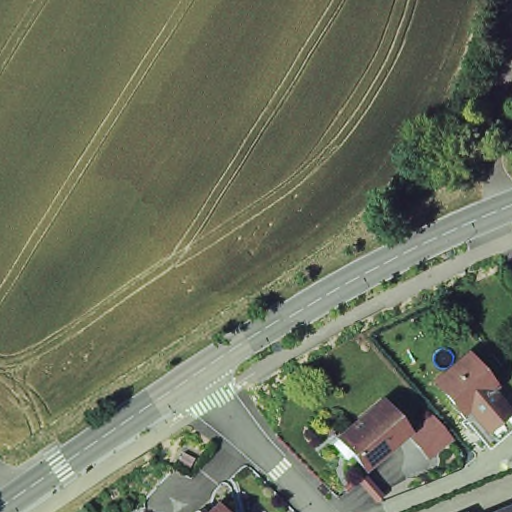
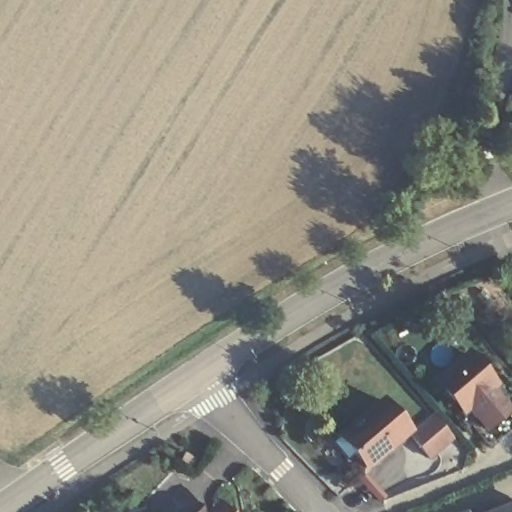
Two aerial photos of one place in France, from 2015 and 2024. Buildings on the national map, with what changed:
unchanged [(512,413),(495,427),(475,404),(471,408),(446,379),(475,355),(500,383),(495,387),(512,408),(512,413)]
unchanged [(340,430),(387,395),(418,430),(421,432),(411,440),(373,470),(340,430)]
unchanged [(421,432),(418,430),(433,415),(457,440),(432,460),(411,440),(421,432)]
unchanged [(195,475),(183,469),(189,458),(200,464),(201,465),(196,475),(195,475)]
unchanged [(512,512),(500,512),(512,507),(512,512)]
unchanged [(219,512),(211,512),(215,508),(219,512)]
unchanged [(201,512),(199,512),(200,511),(201,512)]

